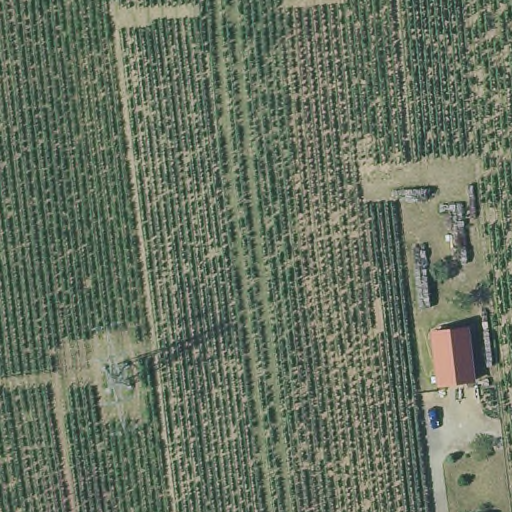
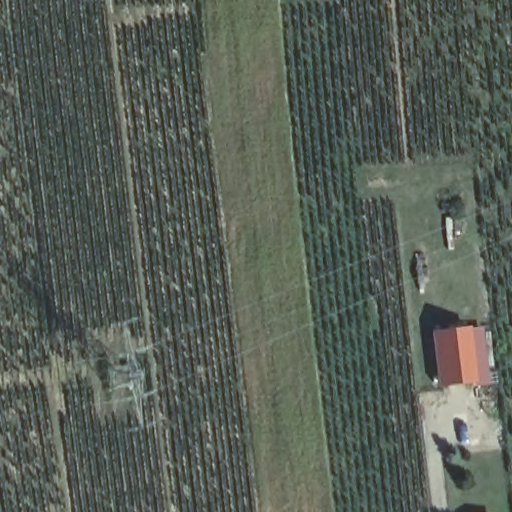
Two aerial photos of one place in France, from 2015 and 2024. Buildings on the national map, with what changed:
unchanged [(436,332),(467,329),(473,381),(442,385),(437,385),(431,333),(436,332)]

